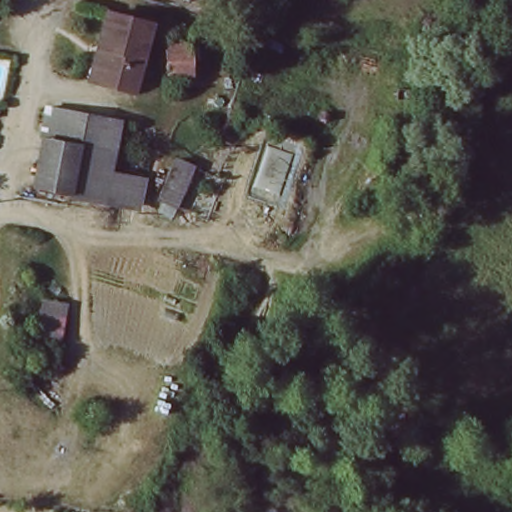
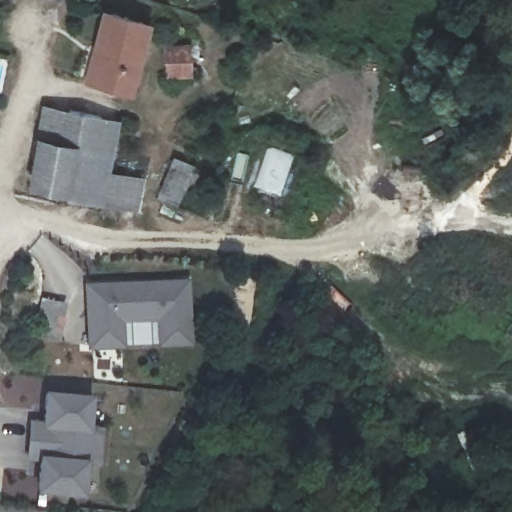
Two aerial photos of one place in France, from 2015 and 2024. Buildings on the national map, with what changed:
unchanged [(93,49),(101,14),(147,24),(132,92),(95,84),(85,81),(93,49)]
unchanged [(188,91),(167,90),(169,63),(188,63),(188,91)]
unchanged [(36,136),(42,105),(121,120),(111,166),(146,174),(138,208),(24,190),(36,136)]
unchanged [(167,224),(146,216),(159,176),(182,184),(167,224)]
new [(188,280),(191,343),(156,345),(156,320),(123,321),(123,345),(86,350),(85,283),(188,280)]
unchanged [(37,298),(68,300),(64,342),(30,336),(37,298)]
new [(42,419),(45,390),(91,394),(90,423),(102,425),(97,464),(86,462),(85,496),(33,491),(38,458),(26,458),(30,420),(42,419)]

